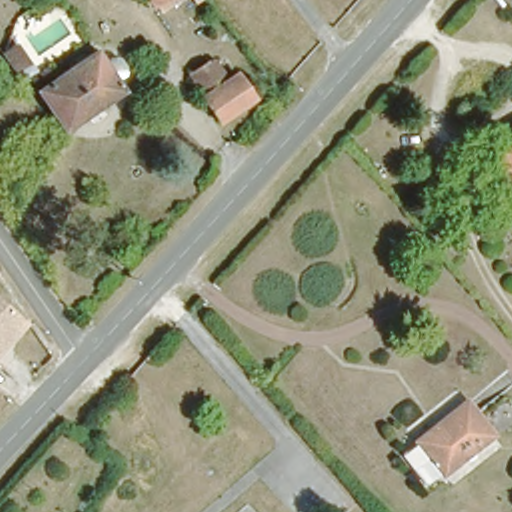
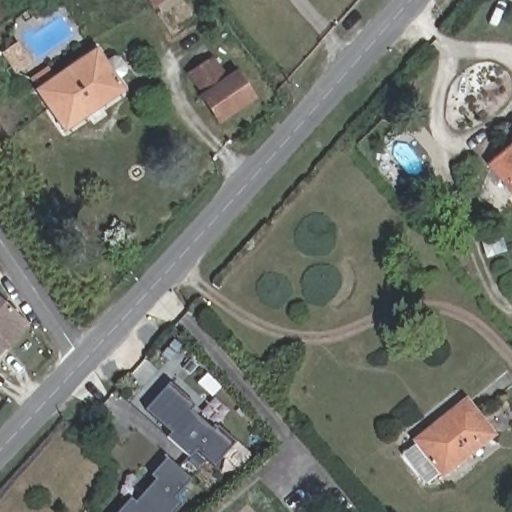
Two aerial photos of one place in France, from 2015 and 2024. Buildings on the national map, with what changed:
unchanged [(153,1),(152,0),(153,0),(153,1)]
unchanged [(198,0),(208,0),(210,2),(200,10),(195,2),(198,0)]
unchanged [(62,124),(36,83),(94,42),(122,81),(62,124)]
unchanged [(195,71),(214,57),(228,77),(239,70),(258,94),(223,119),(205,95),(204,95),(209,91),(195,71)]
unchanged [(512,142),(512,181),(492,158),(512,142)]
unchanged [(32,322),(0,357),(0,295),(32,322)]
new [(188,457),(165,437),(169,431),(146,410),(170,382),(195,404),(190,410),(212,431),(217,426),(236,442),(213,467),(195,450),(188,457)]
unchanged [(491,433),(443,472),(440,470),(427,480),(401,450),(415,437),(411,433),(461,395),(491,433)]
new [(180,503),(172,512),(116,512),(129,498),(134,502),(153,480),(149,476),(166,456),(191,478),(174,498),(180,503)]

